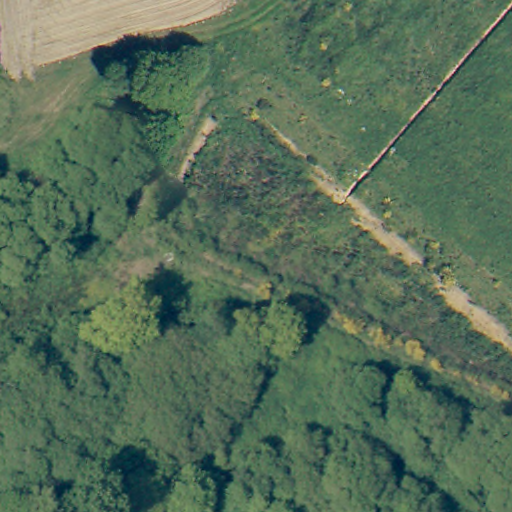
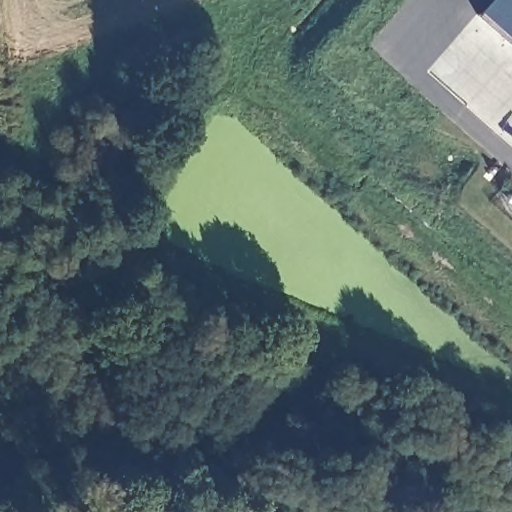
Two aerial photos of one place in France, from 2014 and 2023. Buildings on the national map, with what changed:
new [(476,16),(490,0),(512,0),(512,47),(476,16)]

